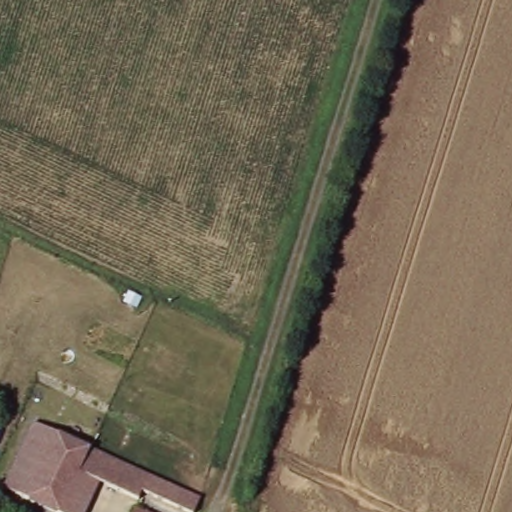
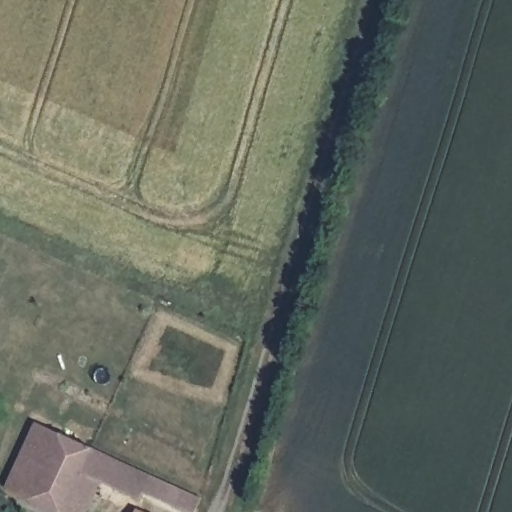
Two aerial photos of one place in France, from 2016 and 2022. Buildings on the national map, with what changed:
unchanged [(198,512),(192,512),(145,490),(141,496),(104,481),(86,512),(66,512),(3,483),(40,423),(206,496),(198,512)]

